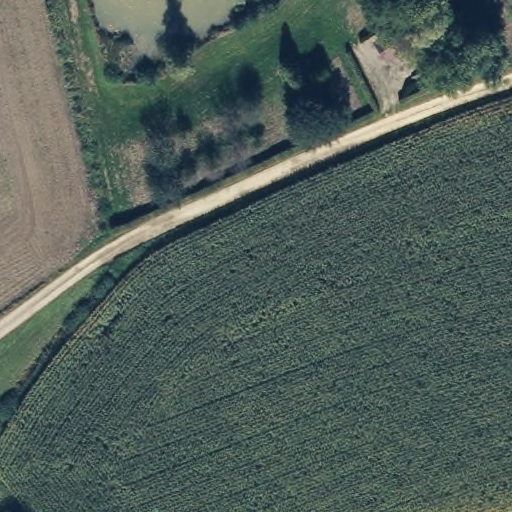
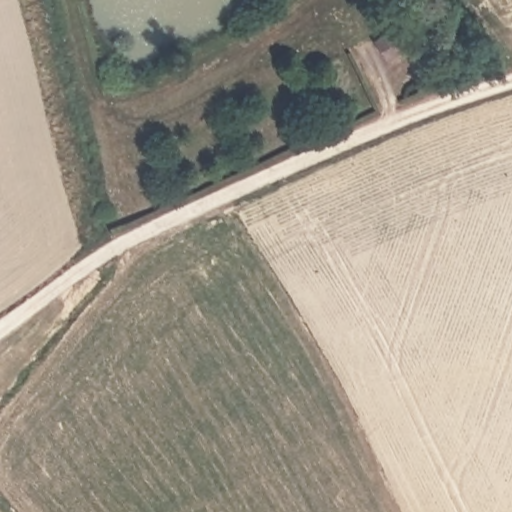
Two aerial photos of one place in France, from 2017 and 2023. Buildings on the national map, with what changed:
unchanged [(410,40),(388,55),(378,36),(400,21),(410,40)]

